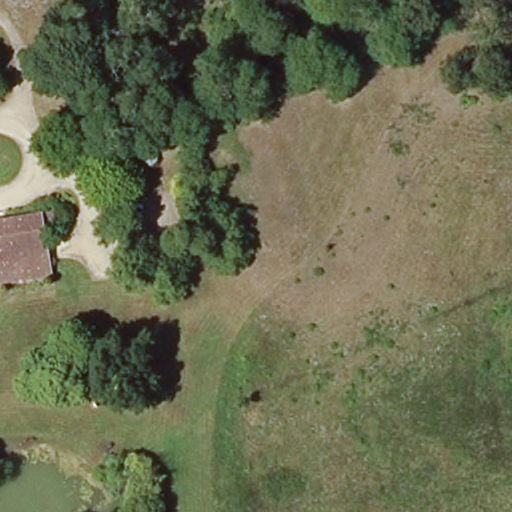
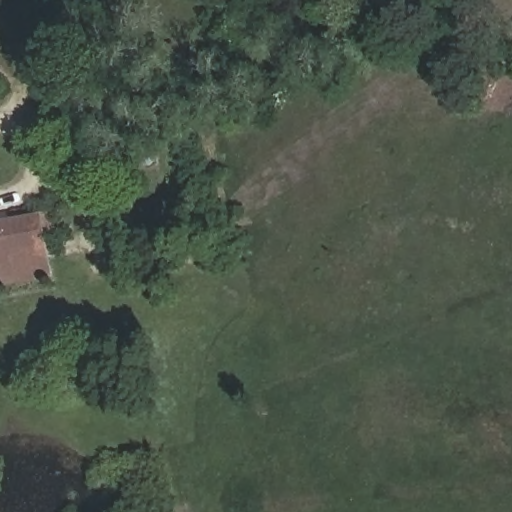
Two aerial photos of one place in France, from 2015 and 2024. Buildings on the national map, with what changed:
unchanged [(42,219),(50,279),(0,285),(0,225),(42,219)]

